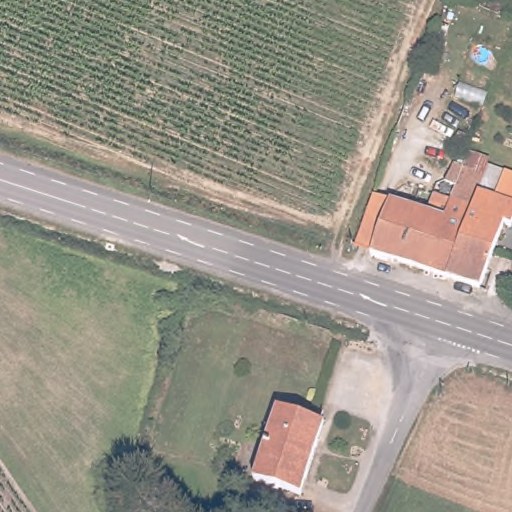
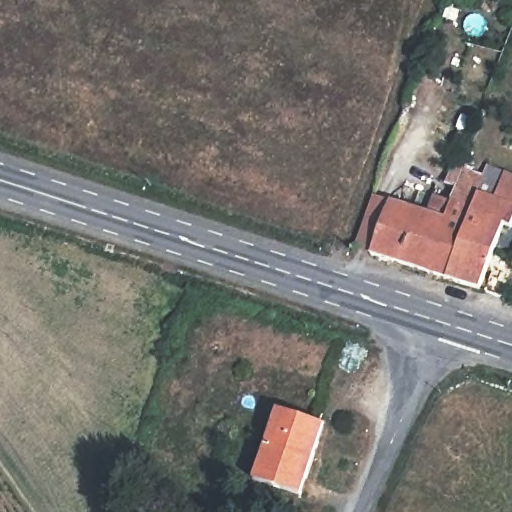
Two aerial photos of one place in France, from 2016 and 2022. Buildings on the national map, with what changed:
unchanged [(467,140),(458,138),(461,127),(471,130),(467,140)]
unchanged [(457,193),(461,181),(449,177),(457,157),(466,160),(472,145),(494,154),(492,160),(512,167),(512,220),(509,219),(498,248),(464,237),(478,200),(457,193)]
unchanged [(394,195),(374,248),(357,242),(377,190),(394,195)]
unchanged [(374,248),(394,195),(434,207),(439,190),(456,195),(457,193),(478,200),(464,237),(452,272),(374,248)]
unchanged [(498,248),(485,282),(452,272),(464,237),(498,248)]
unchanged [(277,406),(326,423),(302,494),(254,477),(277,406)]

